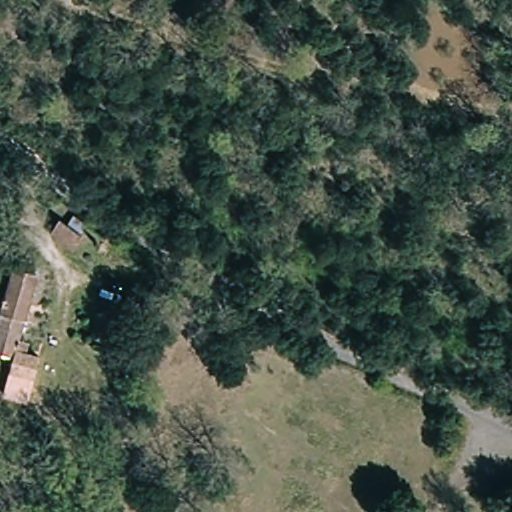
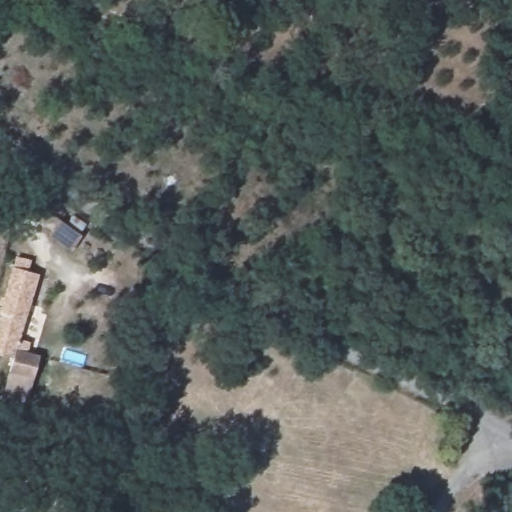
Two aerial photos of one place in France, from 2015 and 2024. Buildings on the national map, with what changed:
unchanged [(27,277),(38,280),(22,355),(45,359),(41,379),(17,374),(20,361),(0,357),(0,336),(15,261),(30,265),(27,277)]

